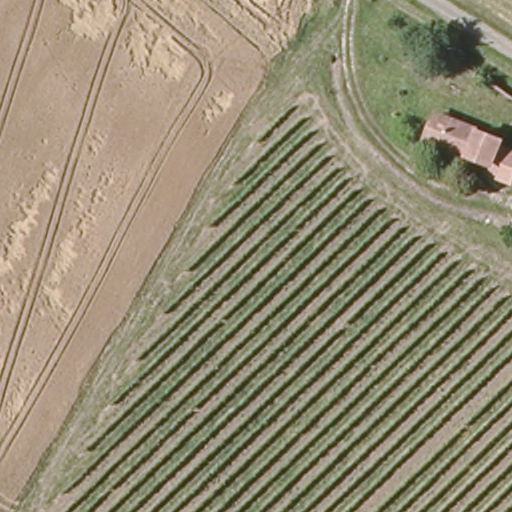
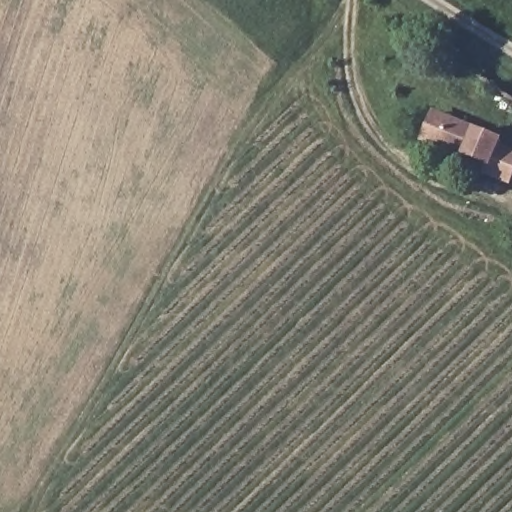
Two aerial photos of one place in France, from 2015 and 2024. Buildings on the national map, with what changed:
unchanged [(509,187),(488,176),(493,165),(469,155),(467,159),(424,140),(436,115),(502,144),(499,149),(512,155),(512,180),(509,187)]

